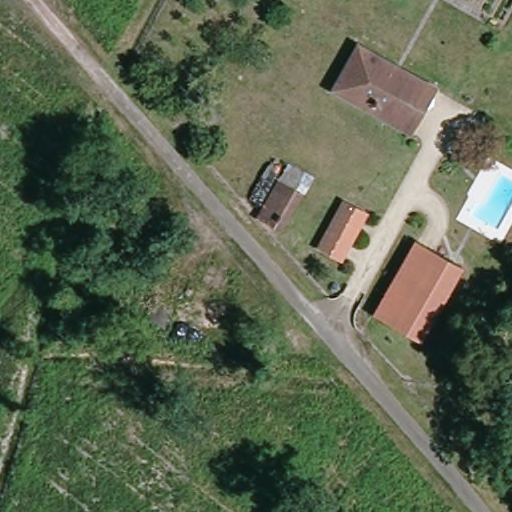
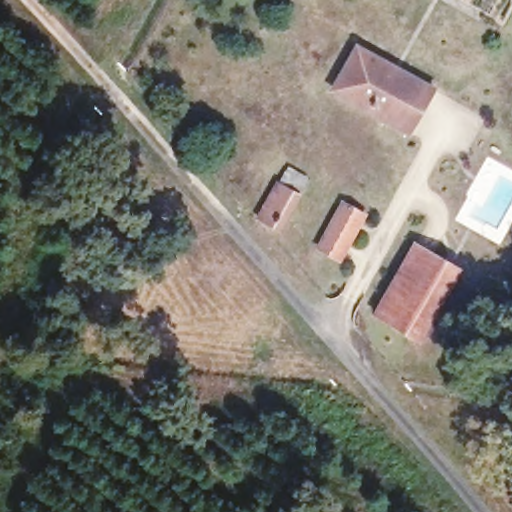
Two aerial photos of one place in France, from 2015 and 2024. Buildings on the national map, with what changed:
unchanged [(421,121),(340,79),(366,28),(442,71),(421,121)]
unchanged [(258,211),(276,186),(291,200),(277,233),(258,211)]
unchanged [(347,280),(327,271),(347,218),(369,225),(347,280)]
unchanged [(412,343),(381,330),(420,251),(450,264),(412,343)]

